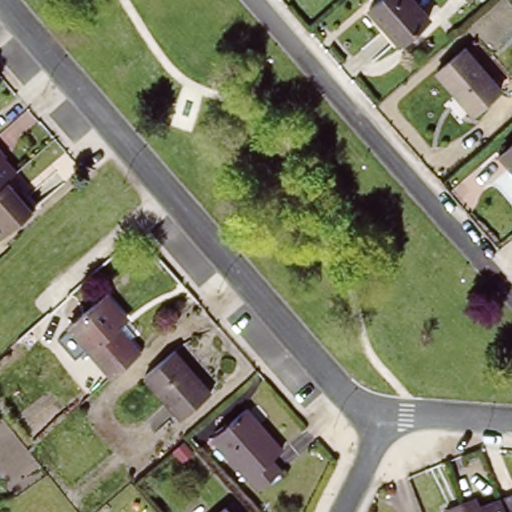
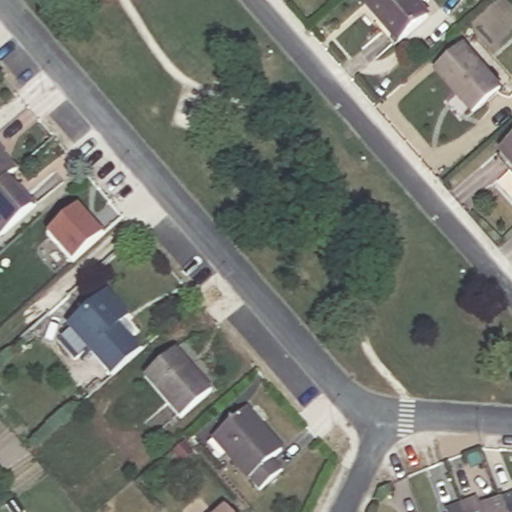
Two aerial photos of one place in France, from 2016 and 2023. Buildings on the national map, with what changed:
unchanged [(372,10),(384,0),(418,0),(433,18),(403,44),(372,10)]
unchanged [(435,76),(462,52),(497,94),(469,118),(435,76)]
unchanged [(17,177),(7,185),(0,192),(0,147),(8,156),(3,160),(17,177)]
unchanged [(512,151),(512,171),(502,160),(512,151)]
unchanged [(37,213),(3,244),(0,240),(0,192),(7,185),(18,199),(22,196),(37,213)]
new [(77,208),(102,234),(71,263),(47,233),(77,208)]
unchanged [(125,348),(136,359),(109,384),(65,333),(100,301),(125,328),(122,330),(133,341),(125,348)]
unchanged [(177,358),(215,399),(183,426),(146,384),(177,358)]
unchanged [(272,463),(281,473),(259,493),(212,439),(245,412),(283,453),(272,463)]
unchanged [(512,493),(512,512),(505,495),(512,493)]
unchanged [(512,512),(471,512),(466,500),(480,494),(484,503),(505,495),(512,512)]
unchanged [(471,512),(442,512),(441,509),(466,500),(471,512)]
unchanged [(227,512),(222,512),(225,509),(227,512)]

